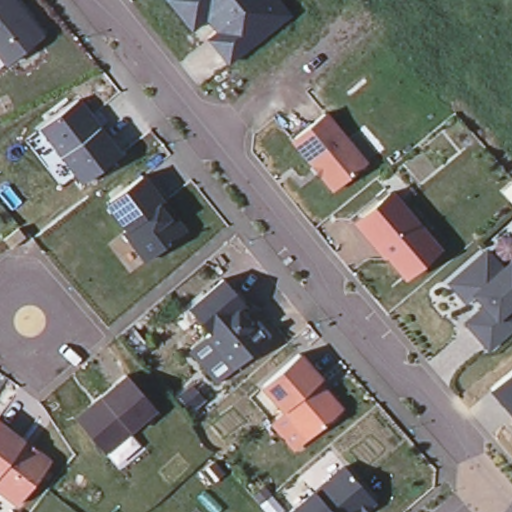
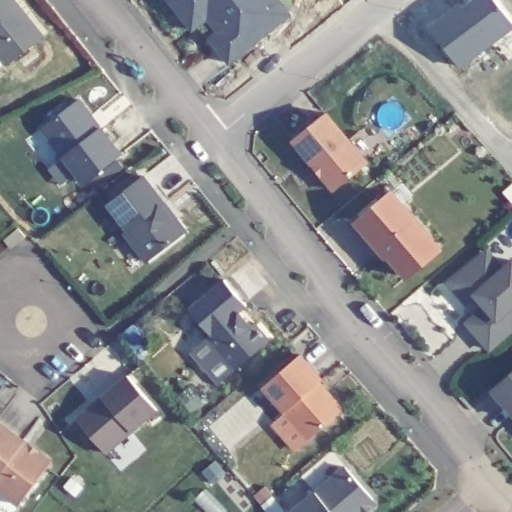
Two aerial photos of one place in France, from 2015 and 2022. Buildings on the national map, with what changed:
unchanged [(8,62),(6,61),(0,53),(0,0),(15,0),(27,14),(43,34),(39,37),(8,62)]
unchanged [(211,38),(219,31),(208,17),(194,29),(169,0),(208,0),(248,49),(230,63),(211,38)]
unchanged [(208,0),(280,0),(291,14),(248,49),(208,0)]
new [(491,0),(512,27),(512,32),(459,70),(431,32),(475,0),(491,0)]
unchanged [(92,115),(101,127),(122,154),(85,183),(43,127),(80,99),(92,115)]
unchanged [(293,139),(327,112),(367,162),(334,189),(322,174),(315,165),(293,139)]
unchanged [(183,234),(148,261),(126,232),(129,229),(109,203),(145,176),(166,203),(177,218),(184,227),(183,234)]
unchanged [(389,254),(391,252),(361,217),(392,191),(440,248),(407,276),(389,254)]
unchanged [(26,235),(12,246),(5,238),(19,226),(26,235)]
unchanged [(485,252),(490,252),(503,268),(512,261),(512,306),(511,306),(512,308),(512,329),(490,348),(467,322),(486,305),(476,293),(470,299),(465,298),(453,285),(453,280),(485,252)]
unchanged [(190,308),(225,278),(247,303),(243,307),(255,321),(270,338),(235,368),(208,336),(211,333),(190,308)]
unchanged [(309,438),(285,410),(263,385),(300,353),(322,378),(319,381),(331,395),(343,409),(309,438)]
unchanged [(512,371),(512,411),(492,388),(512,371)]
unchanged [(161,412),(109,456),(75,415),(128,374),(161,412)]
unchanged [(49,465),(20,503),(0,489),(0,421),(25,440),(39,450),(48,458),(52,461),(49,465)]
unchanged [(345,465),(373,497),(373,504),(363,512),(291,512),(345,465)]

